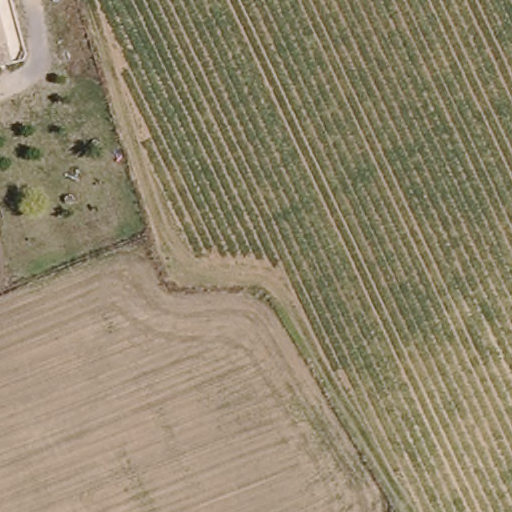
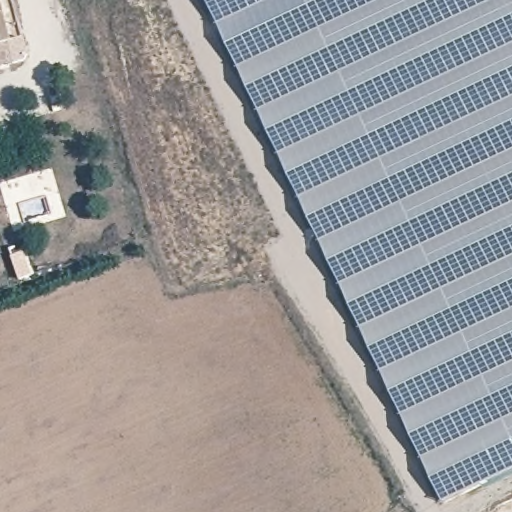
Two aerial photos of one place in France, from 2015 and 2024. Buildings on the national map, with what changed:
new [(445,503),(207,0),(512,0),(512,471),(445,503)]
unchanged [(0,1),(11,39),(0,43),(0,1)]
unchanged [(18,61),(0,67),(0,43),(11,39),(18,61)]

